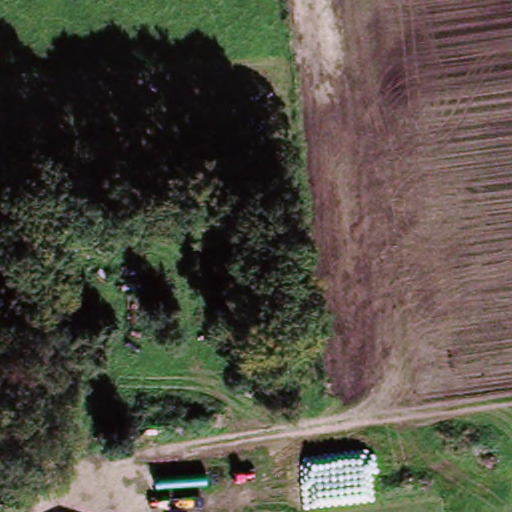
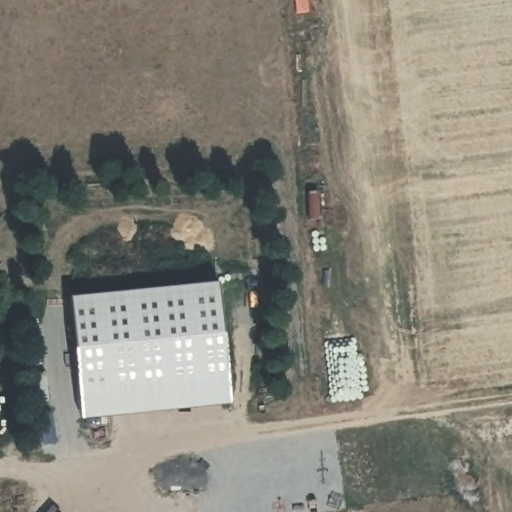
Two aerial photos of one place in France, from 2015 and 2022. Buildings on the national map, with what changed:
new [(218,282),(229,403),(81,419),(69,296),(218,282)]
demolished [(70,425),(54,427),(51,383),(66,382),(70,425)]

